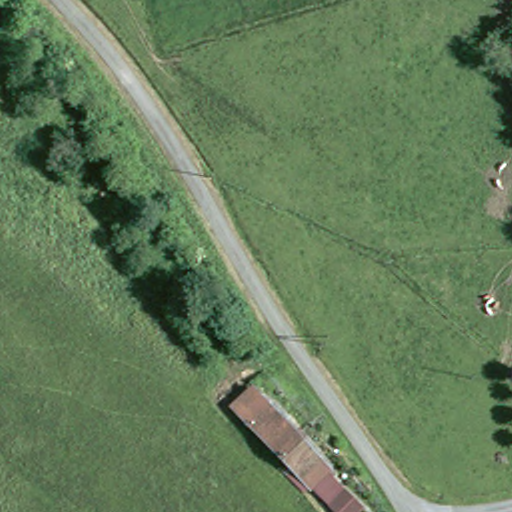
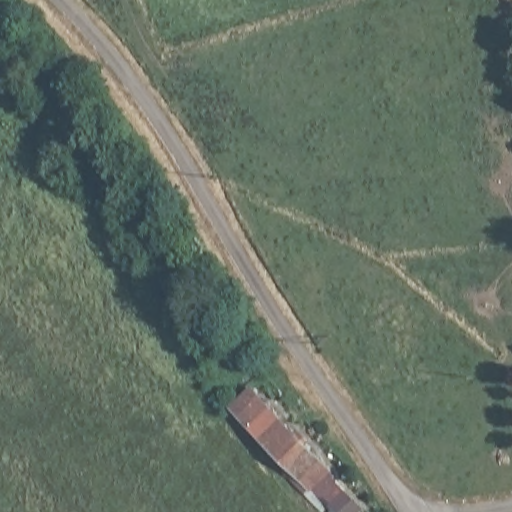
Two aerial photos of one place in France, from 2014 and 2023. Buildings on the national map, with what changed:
unchanged [(316,493),(304,482),(252,434),(271,414),(287,430),(286,431),(321,465),(332,476),(316,493)]

